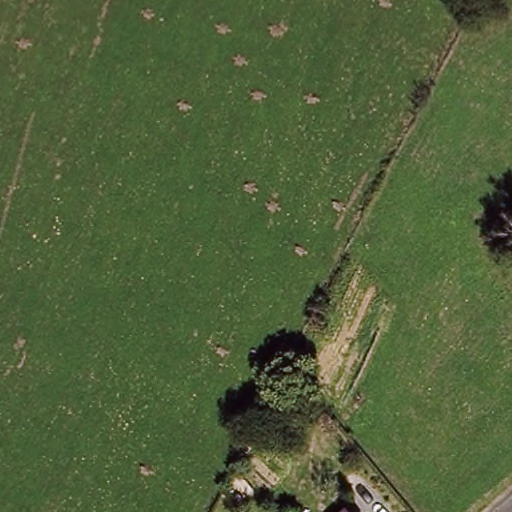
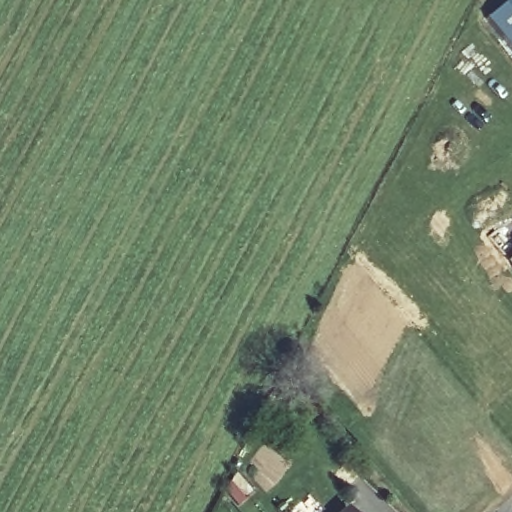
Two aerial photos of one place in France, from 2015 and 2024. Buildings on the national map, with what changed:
new [(487,17),(507,0),(512,0),(512,47),(487,17)]
unchanged [(346,508),(350,512),(341,512),(346,508)]

